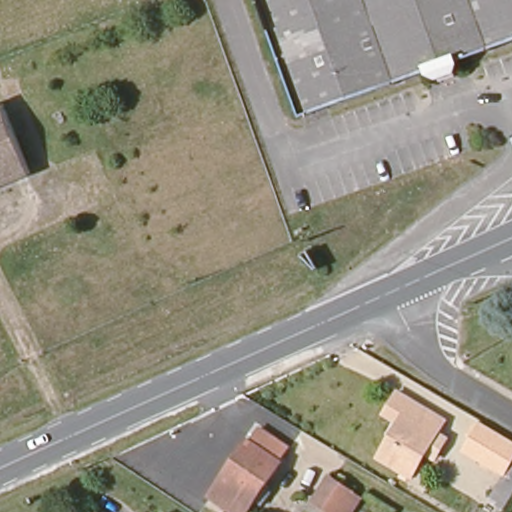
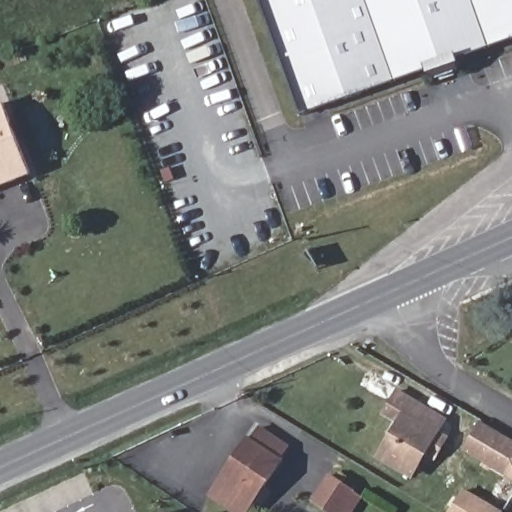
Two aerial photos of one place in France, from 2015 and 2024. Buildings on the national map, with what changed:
unchanged [(303,115),(261,0),(476,0),(492,45),(303,115)]
unchanged [(492,45),(476,0),(512,0),(512,38),(492,45)]
unchanged [(0,183),(0,101),(1,100),(30,171),(0,183)]
unchanged [(383,450),(401,423),(391,415),(406,393),(451,420),(416,470),(383,450)]
unchanged [(512,436),(512,487),(498,480),(503,471),(469,450),(488,422),(512,436)]
unchanged [(224,472),(259,426),(288,446),(280,456),(285,460),(244,512),(239,512),(217,498),(209,493),(224,472)]
unchanged [(315,500),(330,477),(361,496),(350,512),(334,512),(315,500)]
new [(499,512),(449,512),(462,490),(499,511),(499,512)]

